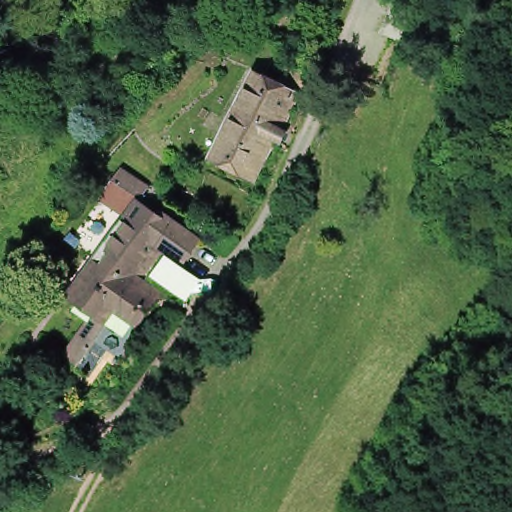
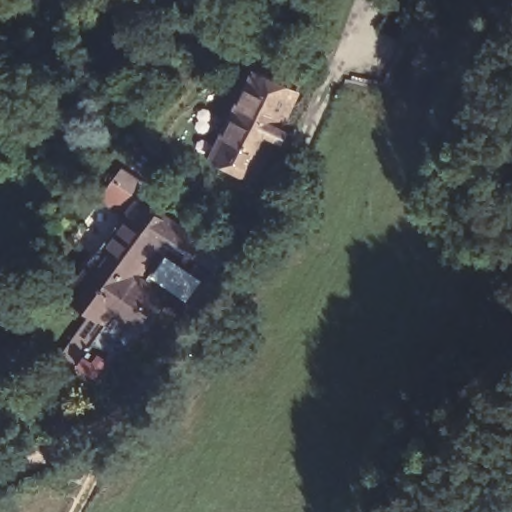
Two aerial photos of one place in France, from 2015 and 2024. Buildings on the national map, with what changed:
unchanged [(399,0),(425,9),(406,55),(375,41),(391,0),(399,0)]
unchanged [(242,118),(267,75),(285,84),(294,69),(317,81),(308,96),(287,140),(242,118)]
unchanged [(287,140),(263,184),(220,161),(242,118),(287,140)]
unchanged [(151,211),(182,232),(185,230),(214,250),(195,276),(173,262),(151,293),(145,301),(106,275),(135,233),(138,228),(151,211)]
unchanged [(145,301),(120,336),(98,322),(82,311),(106,275),(145,301)]

